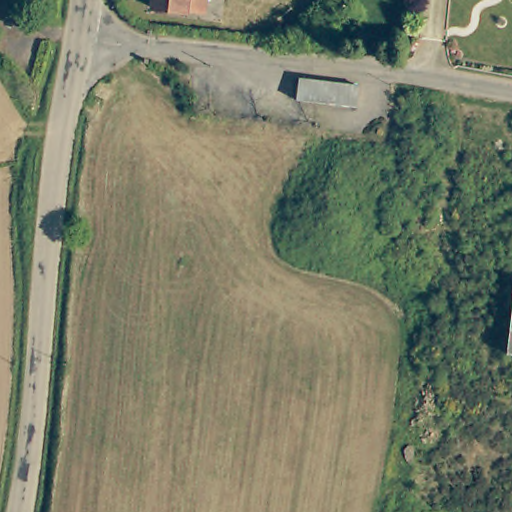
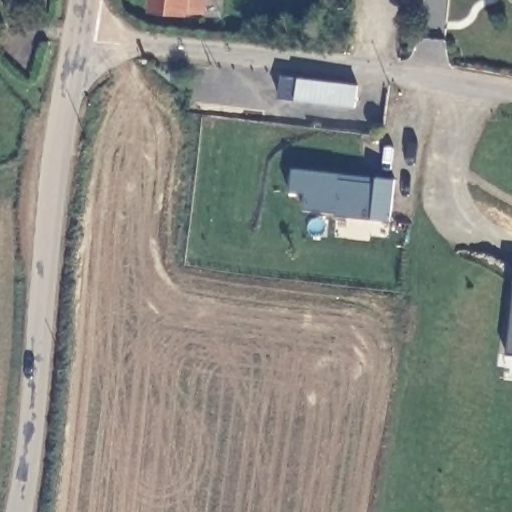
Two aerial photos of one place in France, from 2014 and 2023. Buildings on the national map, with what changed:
unchanged [(201,10),(176,9),(174,11),(147,7),(148,0),(202,0),(201,10)]
unchanged [(355,106),(294,96),(296,81),(358,87),(355,106)]
new [(338,166),(375,170),(393,171),(390,214),(336,209),(336,206),(303,202),(304,187),(288,186),(290,162),(338,166)]

